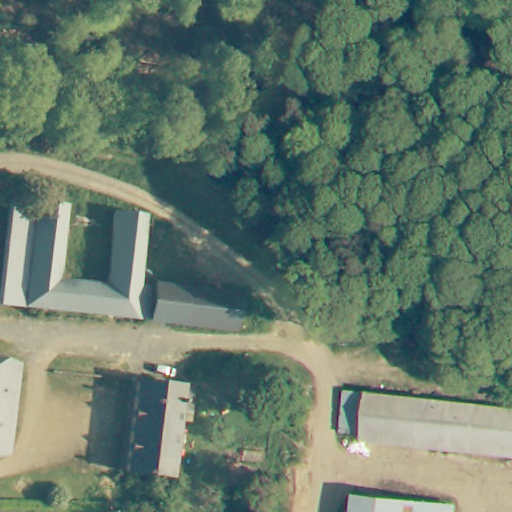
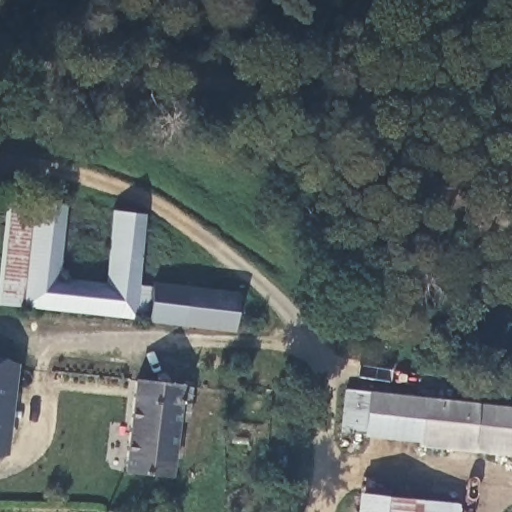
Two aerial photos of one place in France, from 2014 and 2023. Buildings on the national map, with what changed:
unchanged [(0,218),(2,202),(27,205),(22,311),(0,308),(0,218)]
unchanged [(27,205),(64,208),(59,284),(103,288),(112,214),(144,219),(137,290),(150,292),(147,321),(22,311),(27,205)]
unchanged [(147,321),(150,292),(151,282),(237,291),(234,329),(147,321)]
unchanged [(0,400),(0,372),(5,372),(0,400)]
unchanged [(136,383),(182,388),(175,456),(204,460),(201,487),(124,475),(136,383)]
unchanged [(512,411),(512,454),(347,441),(351,398),(512,411)]
unchanged [(454,512),(362,512),(363,500),(454,508),(454,512)]

